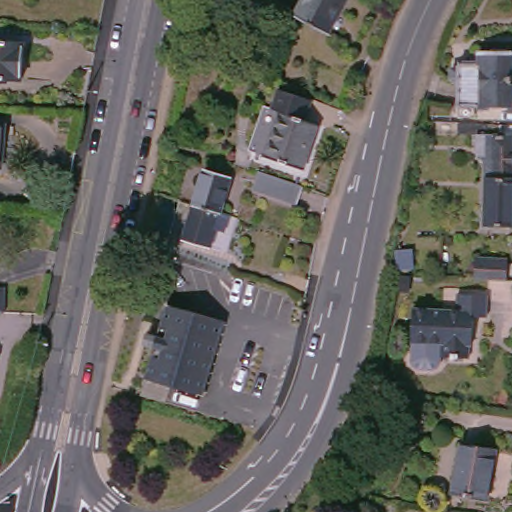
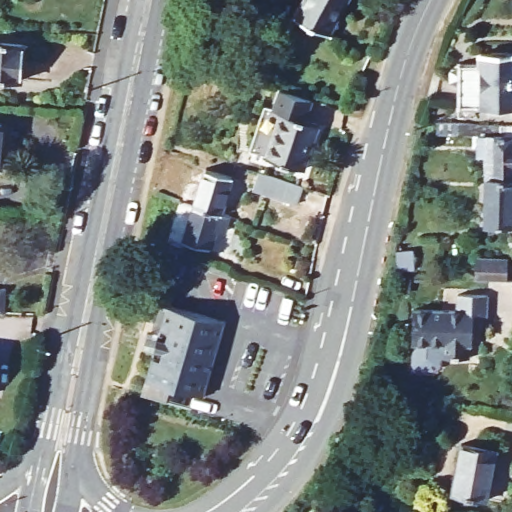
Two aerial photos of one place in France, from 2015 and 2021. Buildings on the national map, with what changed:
unchanged [(325,35),(293,16),(301,0),(344,0),(325,35)]
unchanged [(0,79),(0,41),(29,44),(26,80),(0,79)]
unchanged [(466,70),(476,70),(475,60),(512,60),(512,112),(466,112),(466,70)]
unchanged [(312,106),(308,121),(318,124),(302,170),(265,157),(279,112),(268,108),(274,91),(312,106)]
unchanged [(490,218),(491,187),(491,170),(491,164),(481,163),(482,142),(441,139),(441,128),(469,130),(469,122),(486,122),(486,131),(512,133),(512,232),(489,232),(490,218)]
unchanged [(0,145),(0,125),(2,125),(0,145)]
unchanged [(207,169),(234,178),(224,215),(196,206),(207,169)]
unchanged [(301,189),(296,205),(252,191),(258,174),(301,189)]
unchanged [(224,215),(235,218),(229,233),(225,232),(218,251),(186,240),(196,206),(224,215)]
unchanged [(413,272),(401,274),(397,254),(411,252),(413,272)]
unchanged [(476,261),(507,262),(506,283),(475,281),(476,261)]
unchanged [(3,288),(3,313),(0,313),(0,288),(3,288)]
unchanged [(483,298),(482,321),(468,320),(467,350),(464,350),(464,363),(439,362),(438,368),(436,373),(430,374),(417,374),(411,372),(409,367),(411,347),(406,347),(408,311),(452,313),(453,297),(483,298)]
unchanged [(163,307),(222,324),(201,399),(142,382),(163,307)]
unchanged [(486,501),(452,496),(461,446),(496,451),(486,501)]

